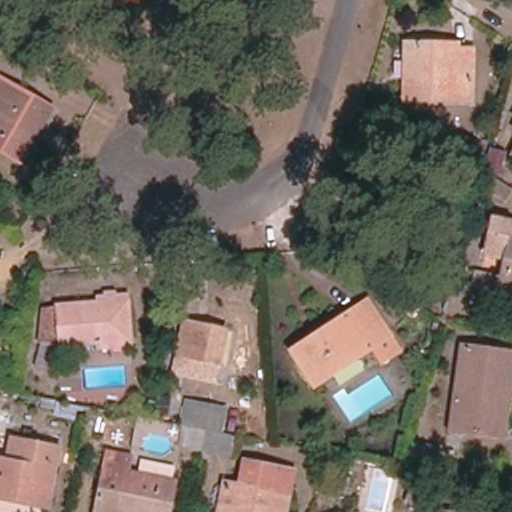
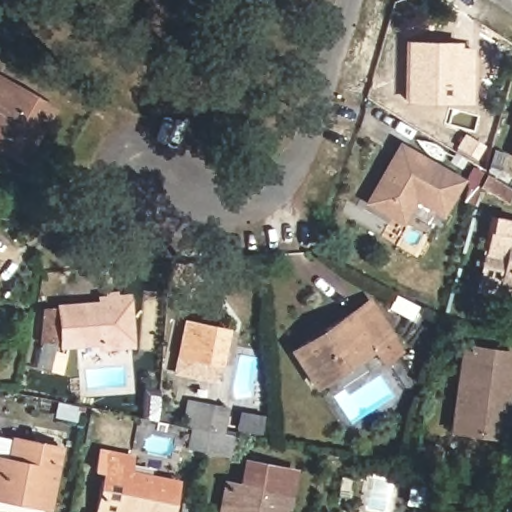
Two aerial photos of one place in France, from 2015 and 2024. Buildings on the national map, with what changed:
unchanged [(407,44),(427,44),(426,49),(474,50),(473,101),(405,100),(407,44)]
unchanged [(0,71),(44,96),(19,140),(0,129),(0,71)]
unchanged [(464,134),(483,146),(475,158),(456,145),(464,134)]
new [(415,202),(403,225),(364,203),(399,141),(464,179),(442,218),(415,202)]
unchanged [(498,297),(505,261),(485,257),(493,217),(512,221),(512,300),(498,297)]
unchanged [(64,307),(105,303),(105,298),(134,296),(138,341),(66,347),(64,307)]
unchanged [(369,300),(402,351),(384,363),(374,349),(315,388),(292,352),(369,300)]
unchanged [(178,351),(183,327),(225,335),(220,360),(178,351)]
unchanged [(68,376),(56,373),(51,371),(40,369),(49,338),(60,341),(55,356),(73,361),(68,376)]
unchanged [(502,398),(496,438),(451,432),(463,347),(512,354),(512,378),(509,399),(502,398)]
unchanged [(144,400),(154,402),(152,411),(143,409),(144,400)]
unchanged [(233,457),(204,451),(179,446),(183,426),(189,402),(227,410),(222,434),(237,437),(233,457)]
unchanged [(60,449),(49,509),(0,499),(0,459),(9,461),(13,439),(60,449)]
unchanged [(412,443),(441,448),(438,468),(408,463),(412,443)]
unchanged [(132,458),(129,472),(177,482),(171,512),(128,512),(120,511),(120,512),(96,512),(109,453),(132,458)]
unchanged [(226,484),(240,487),(245,462),(294,472),(287,512),(220,512),(226,484)]
unchanged [(349,499),(338,497),(342,477),(352,479),(349,499)]

